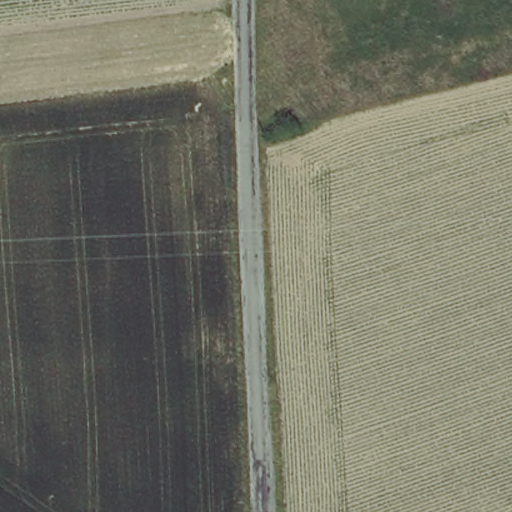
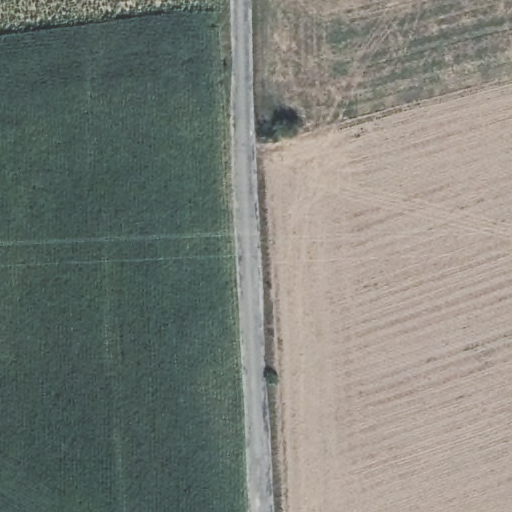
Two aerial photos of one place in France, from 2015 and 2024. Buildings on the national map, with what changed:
[]

